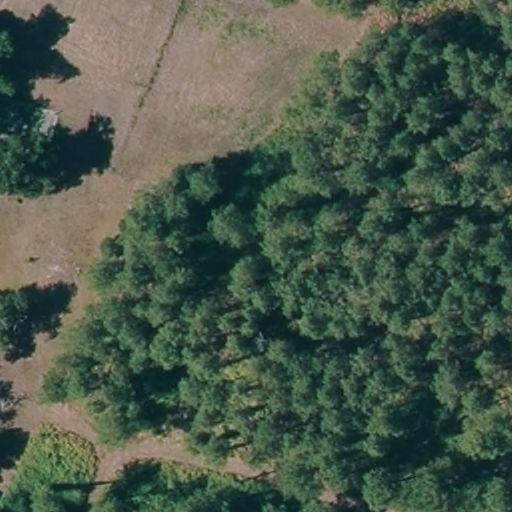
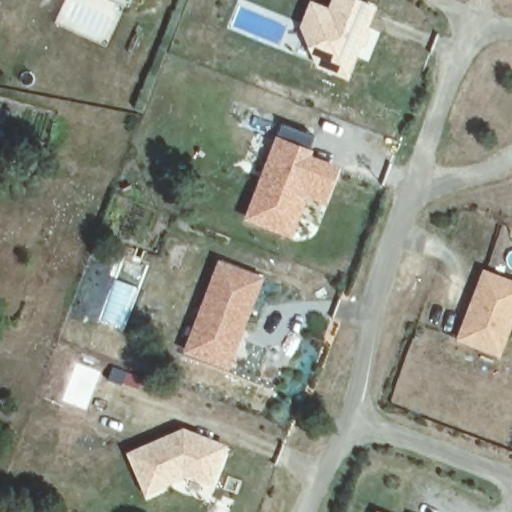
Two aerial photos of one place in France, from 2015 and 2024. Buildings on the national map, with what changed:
new [(328,7),(331,0),(364,0),(378,5),(368,31),(371,32),(365,47),(361,46),(348,79),(317,67),(300,25),(310,0),(311,0),(328,7)]
new [(316,136),(310,148),(314,150),(312,155),(340,166),(327,205),(308,198),(293,238),(245,219),(276,134),(278,136),(283,123),(316,136)]
demolished [(50,261),(32,276),(16,257),(32,242),(50,261)]
new [(264,277),(230,371),(183,353),(219,259),(264,277)]
new [(512,280),(512,327),(501,357),(456,340),(483,269),(512,280)]
new [(228,445),(213,485),(191,477),(146,496),(126,452),(184,427),(228,445)]
new [(376,512),(377,510),(380,512),(376,512)]

